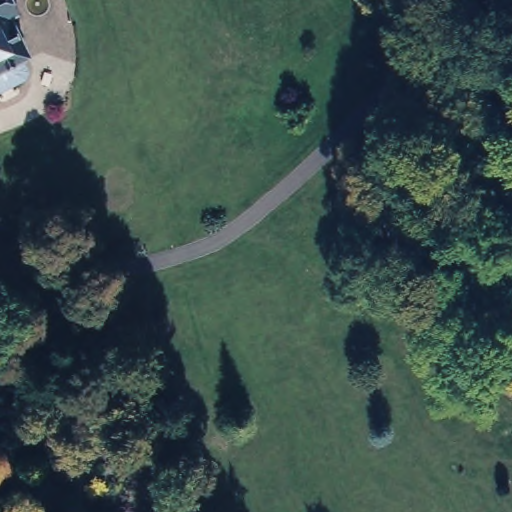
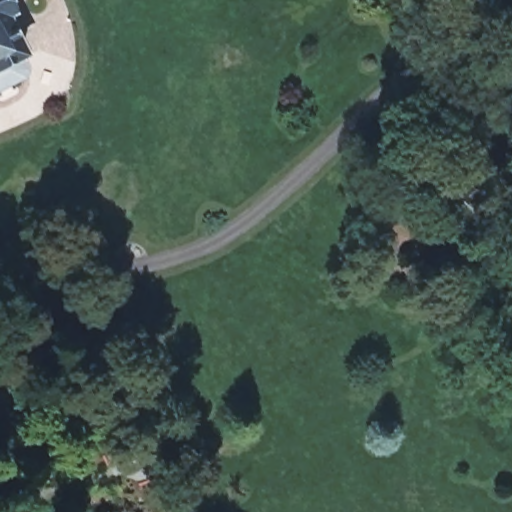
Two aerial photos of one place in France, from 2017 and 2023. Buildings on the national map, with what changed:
unchanged [(14,11),(7,19),(14,29),(11,36),(16,44),(15,54),(0,60),(0,1),(10,0),(14,11)]

